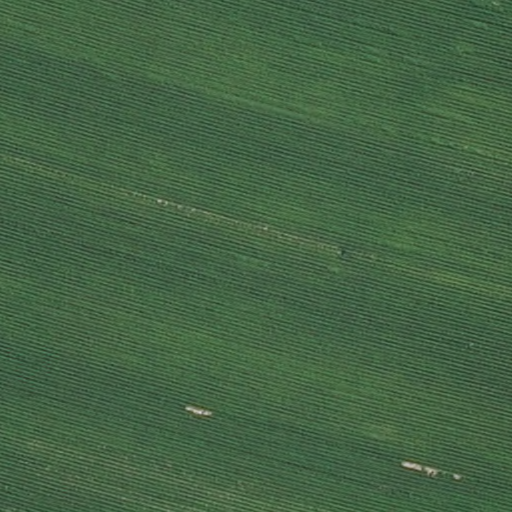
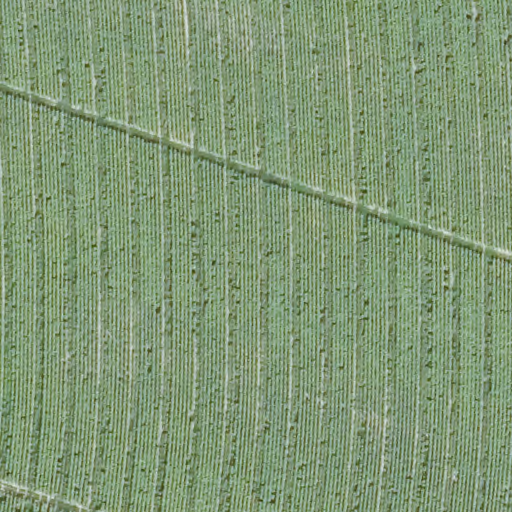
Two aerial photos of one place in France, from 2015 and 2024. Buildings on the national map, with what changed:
[]

